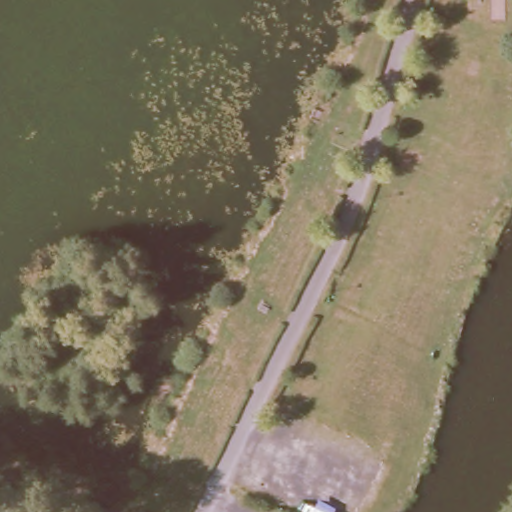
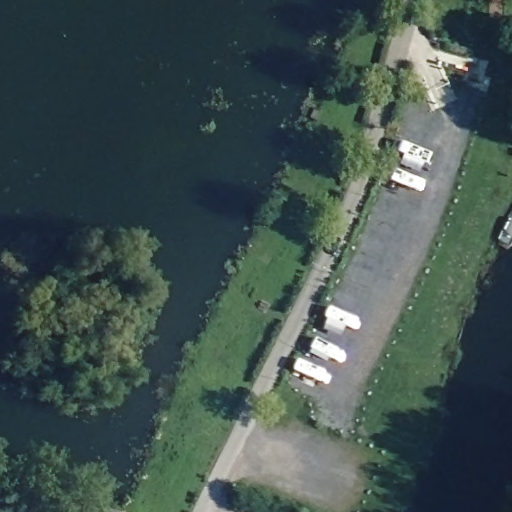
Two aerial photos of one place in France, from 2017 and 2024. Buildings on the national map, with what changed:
unchanged [(449,0),(448,6),(441,4),(442,0),(449,0)]

